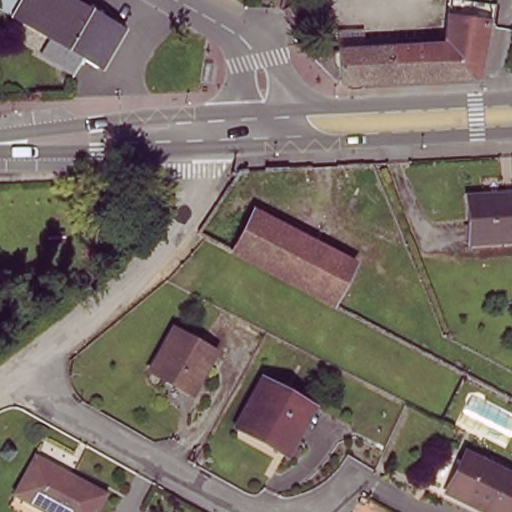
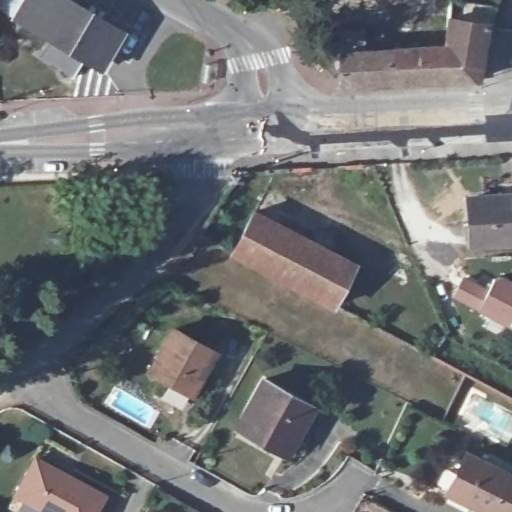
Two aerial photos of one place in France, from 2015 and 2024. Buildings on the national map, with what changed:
unchanged [(87,8),(92,2),(105,10),(102,16),(123,29),(102,66),(85,56),(76,71),(42,51),(50,37),(13,15),(2,8),(1,0),(74,0),(87,8)]
unchanged [(319,66),(330,55),(339,56),(446,49),(452,4),(452,3),(497,9),(495,29),(488,30),(479,82),(473,82),(405,85),(397,85),(354,87),(340,87),(338,85),(319,66)]
unchanged [(512,194),(512,240),(469,242),(466,197),(503,195),(512,194)]
unchanged [(253,211),(353,262),(332,306),(279,278),(230,252),(253,211)]
new [(512,280),(512,328),(475,310),(451,297),(462,273),(487,285),(495,272),(512,280)]
unchanged [(215,351),(191,395),(148,371),(172,327),(215,351)]
unchanged [(313,406),(287,453),(236,425),(262,378),(313,406)]
unchanged [(484,512),(445,492),(465,452),(512,475),(512,512),(484,512)]
unchanged [(94,512),(52,512),(15,492),(35,456),(103,493),(94,512)]

